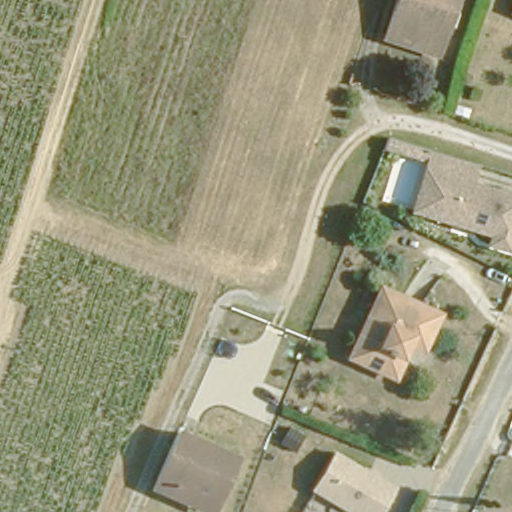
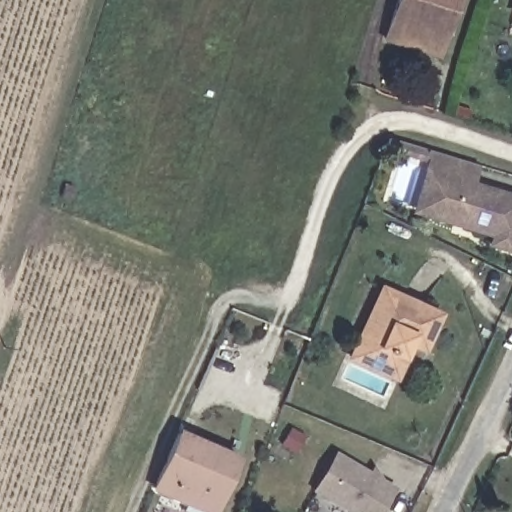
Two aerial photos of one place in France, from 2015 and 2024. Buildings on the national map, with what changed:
unchanged [(444,46),(390,27),(400,0),(450,0),(443,18),(452,23),(444,46)]
unchanged [(510,6),(511,2),(512,1),(512,6),(510,6)]
unchanged [(487,145),(480,164),(512,175),(512,230),(497,225),(501,215),(447,197),(422,189),(435,150),(441,129),(445,130),(487,145)]
unchanged [(437,304),(422,337),(408,333),(393,365),(348,345),(358,325),(363,322),(383,279),(437,304)]
unchanged [(193,493),(163,479),(187,422),(245,447),(232,475),(220,505),(193,493)]
unchanged [(350,512),(311,489),(336,450),(398,486),(382,512),(350,512)]

